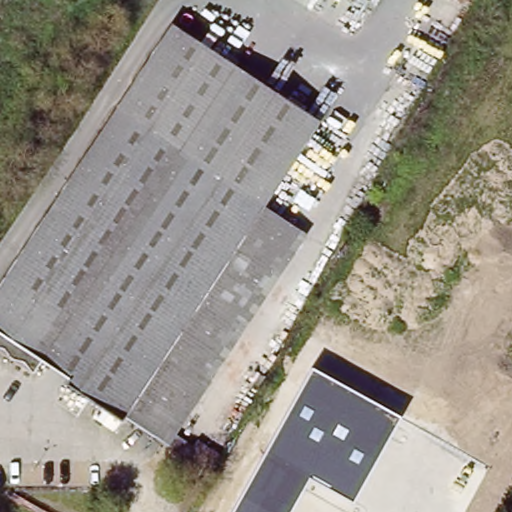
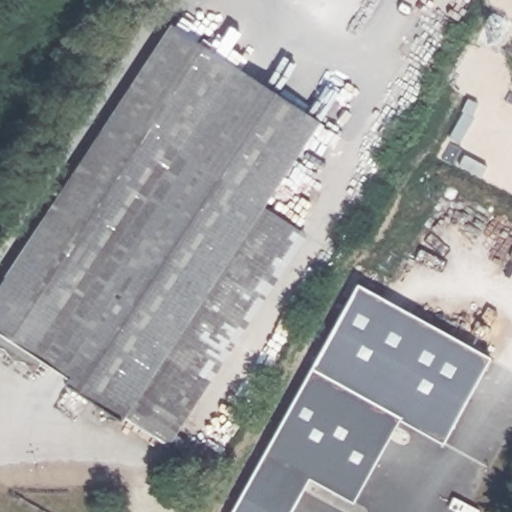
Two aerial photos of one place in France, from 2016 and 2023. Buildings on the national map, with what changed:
unchanged [(262,205),(305,234),(167,443),(126,417),(122,421),(65,382),(67,378),(0,333),(0,286),(170,26),(317,121),(262,205)]
new [(357,284),(490,356),(443,444),(398,419),(400,416),(312,367),(357,284)]
unchanged [(312,367),(400,416),(352,502),(308,477),(289,512),(231,512),(312,367)]
unchanged [(165,469),(175,455),(198,471),(189,485),(165,469)]

